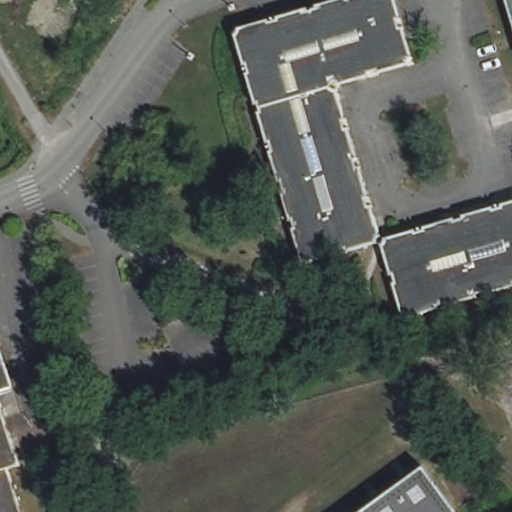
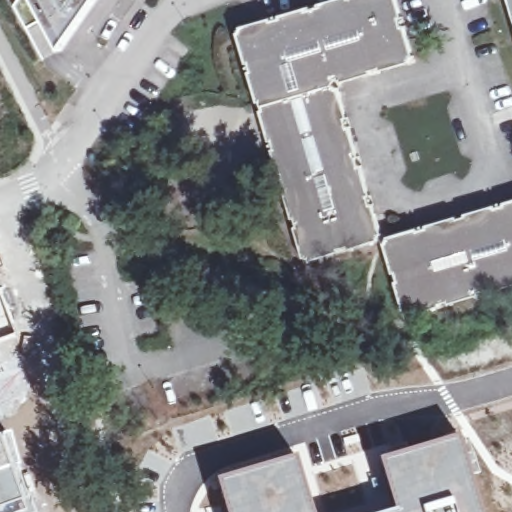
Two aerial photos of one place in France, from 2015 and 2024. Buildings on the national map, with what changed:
new [(32,0),(94,0),(60,51),(32,0)]
unchanged [(242,26),(271,16),(272,19),(282,16),(282,14),(311,5),(311,7),(320,5),(319,2),(326,0),(398,0),(402,14),(400,16),(403,26),(406,25),(414,53),(412,53),(412,56),(410,56),(411,59),(382,69),(381,66),(372,69),(372,71),(344,81),(342,78),(340,78),(340,75),(336,76),(333,84),(336,84),(337,86),(339,86),(347,115),(345,116),(347,125),(350,124),(359,154),(357,155),(360,165),(362,163),(371,192),(367,193),(371,203),(374,202),(383,233),(379,235),(380,238),(351,247),(350,243),(337,247),(339,249),(312,257),(305,254),(295,224),(298,224),(296,216),(292,217),(284,187),(287,186),(284,177),(281,178),(272,148),(275,146),(273,138),(271,140),(261,109),(264,108),(261,98),(259,99),(250,70),(253,70),(250,60),(247,61),(239,32),(242,31),(241,29),(242,28),(242,26)]
unchanged [(511,0),(512,0),(512,3),(511,0)]
unchanged [(389,238),(388,236),(417,226),(418,229),(427,226),(426,224),(457,215),(457,218),(467,215),(467,212),(495,203),(496,206),(505,204),(504,201),(512,198),(512,283),(490,290),(488,287),(479,290),(479,293),(451,301),(450,299),(440,302),(440,304),(412,313),(411,310),(409,311),(409,309),(406,310),(396,280),(399,279),(397,270),(394,271),(385,241),(387,241),(387,238),(389,238)]
demolished [(14,387),(0,392),(0,342),(1,344),(14,387)]
demolished [(0,397),(22,465),(10,469),(24,512),(0,512),(0,397)]
new [(37,512),(0,512),(0,437),(10,434),(37,512)]
new [(393,511),(377,460),(462,435),(477,475),(472,476),(483,512),(390,512),(393,511)]
new [(297,457),(313,512),(224,512),(216,482),(297,457)]
demolished [(426,468),(458,512),(366,512),(426,468)]

